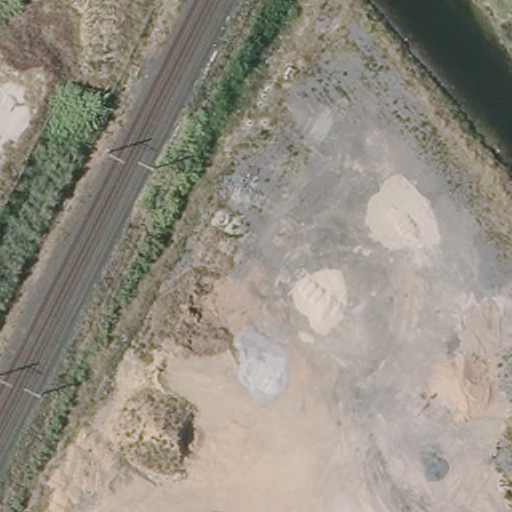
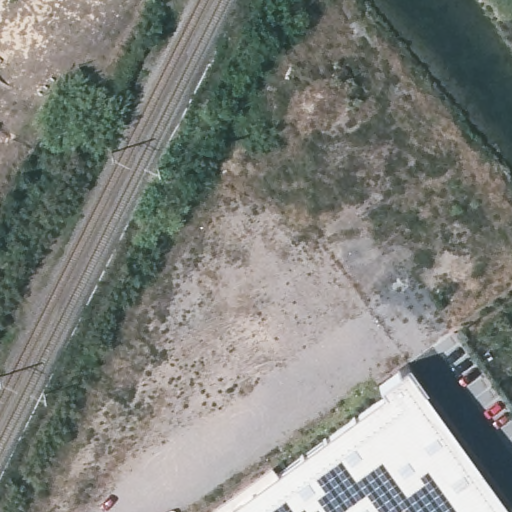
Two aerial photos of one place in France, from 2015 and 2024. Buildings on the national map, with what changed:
new [(378,385),(408,363),(512,510),(512,512),(219,512),(384,393),(378,385)]

